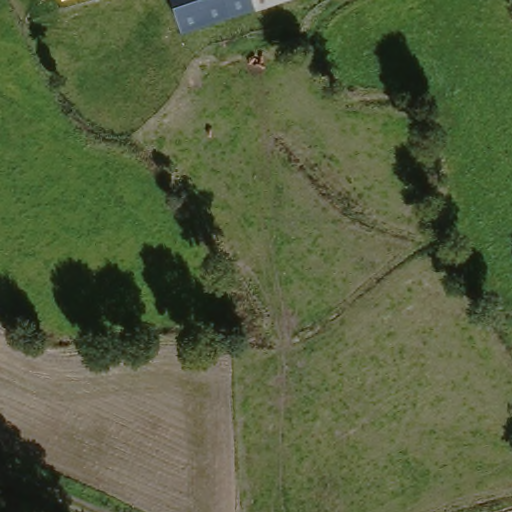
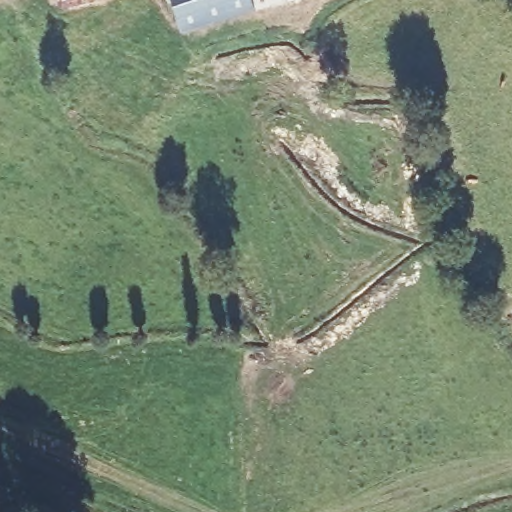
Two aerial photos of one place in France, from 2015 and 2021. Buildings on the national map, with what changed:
unchanged [(184,26),(174,0),(265,0),(184,26)]

